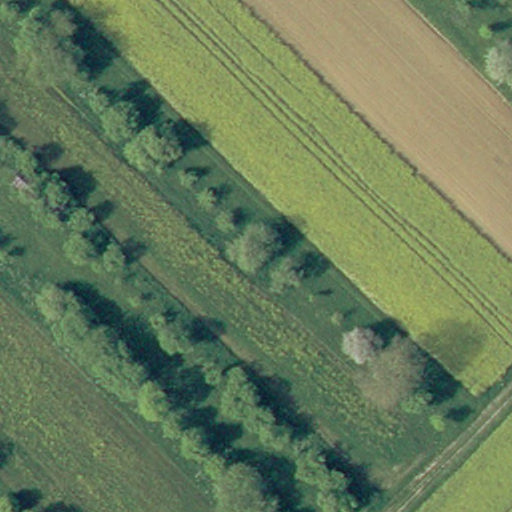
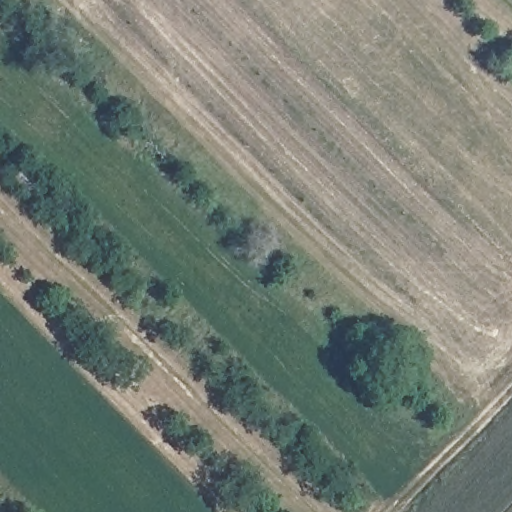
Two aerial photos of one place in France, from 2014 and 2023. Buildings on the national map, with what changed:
unchanged [(27,176),(45,191),(35,205),(16,190),(27,176)]

